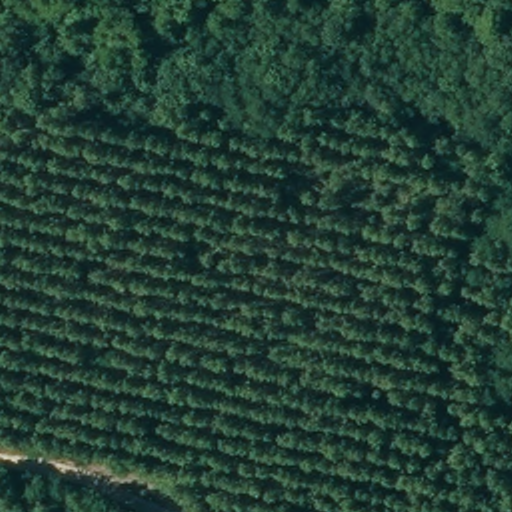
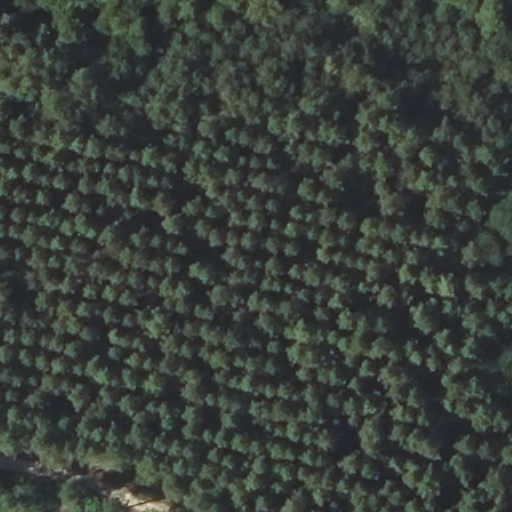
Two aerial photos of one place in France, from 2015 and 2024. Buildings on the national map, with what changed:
[]

